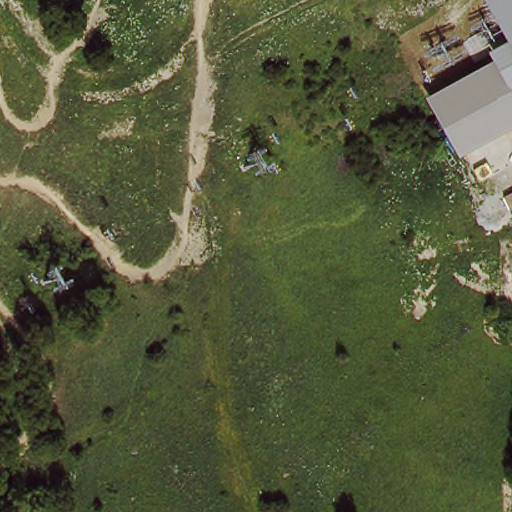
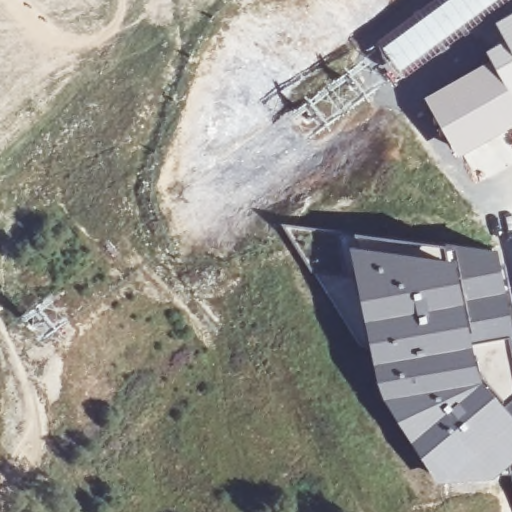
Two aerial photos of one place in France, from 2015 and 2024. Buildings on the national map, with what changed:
unchanged [(509,0),(512,0),(512,47),(492,7),(509,0)]
unchanged [(512,62),(512,92),(500,67),(512,62)]
unchanged [(460,156),(432,103),(467,87),(490,77),(512,122),(512,132),(467,152),(460,156)]
new [(495,476),(439,482),(385,397),(375,363),(310,267),(282,224),(355,232),(447,242),(499,249),(512,315),(512,337),(511,337),(512,344),(512,485),(506,464),(495,476)]

